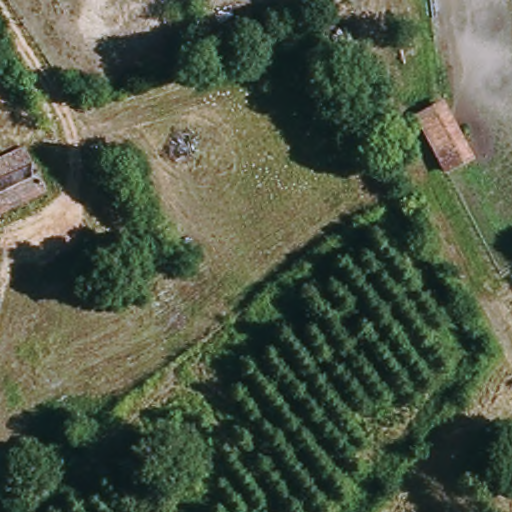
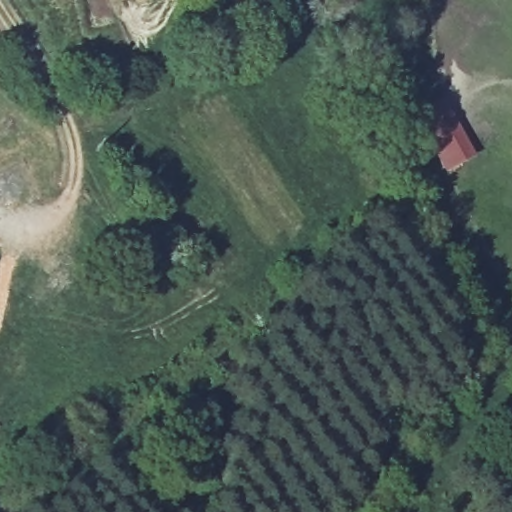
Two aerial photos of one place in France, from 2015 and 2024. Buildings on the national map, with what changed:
unchanged [(443,171),(414,120),(437,109),(465,159),(443,171)]
demolished [(0,216),(0,165),(24,152),(41,186),(44,194),(0,216)]

